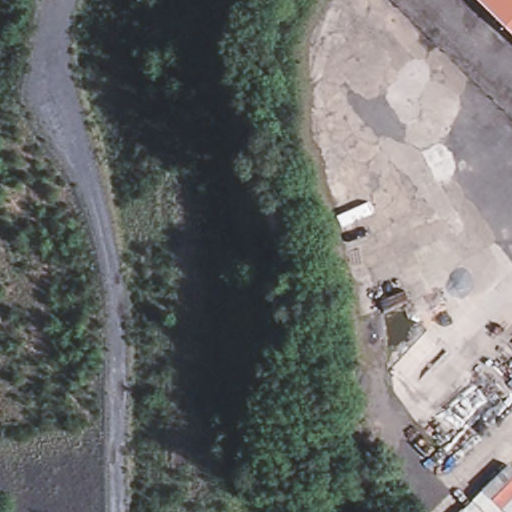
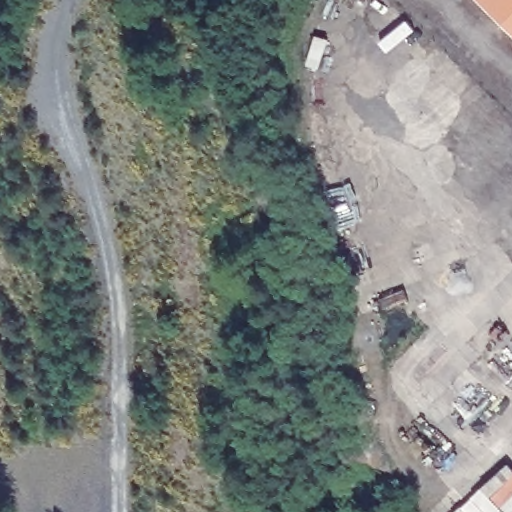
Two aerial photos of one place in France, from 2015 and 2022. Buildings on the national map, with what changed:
unchanged [(483,0),(512,0),(512,27),(483,0)]

